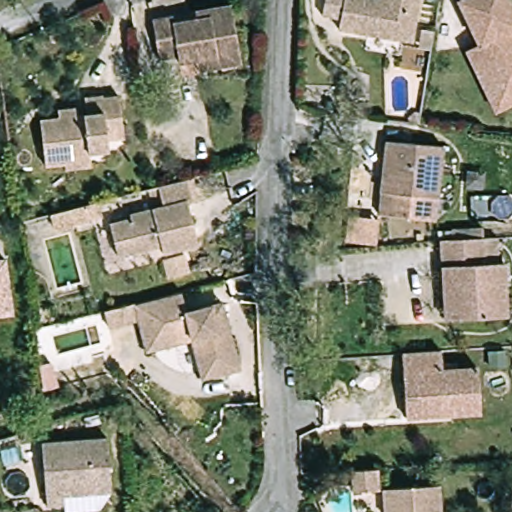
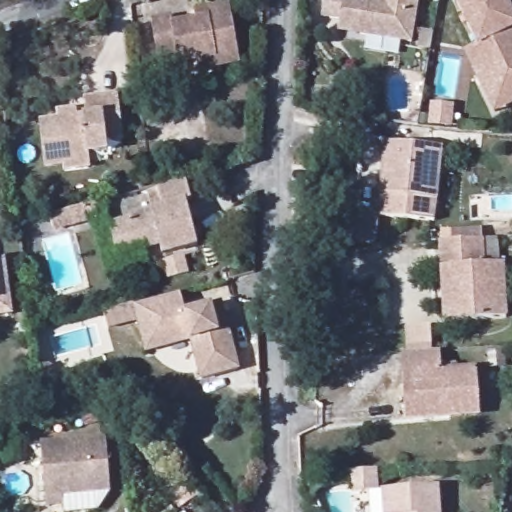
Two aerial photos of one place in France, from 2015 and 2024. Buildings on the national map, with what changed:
unchanged [(339,29),(341,17),(324,14),(327,0),(419,0),(410,43),(339,29)]
unchanged [(492,67),(482,72),(474,55),(484,50),(464,4),(473,0),(511,0),(512,3),(512,88),(505,90),(492,67)]
unchanged [(202,71),(200,60),(190,61),(188,51),(160,56),(154,20),(172,16),(173,20),(195,17),(194,8),(209,6),(232,2),(240,53),(242,65),(202,71)]
unchanged [(435,34),(432,53),(417,50),(420,32),(435,34)]
unchanged [(512,88),(512,110),(502,114),(482,72),(492,67),(505,90),(512,88)]
unchanged [(64,171),(64,168),(44,167),(42,124),(61,123),(61,114),(76,112),(76,122),(88,121),(90,103),(123,102),(124,145),(107,145),(106,155),(87,156),(87,171),(64,171)]
unchanged [(387,161),(388,140),(445,145),(442,200),(420,199),(419,217),(384,215),(385,195),(387,161)]
unchanged [(150,215),(148,192),(156,190),(188,184),(192,206),(187,207),(198,251),(160,259),(159,250),(115,260),(108,227),(130,223),(130,218),(150,215)]
unchanged [(64,225),(59,212),(90,205),(92,219),(64,225)]
unchanged [(440,271),(438,245),(480,242),(480,266),(499,267),(500,320),(474,321),(455,322),(444,323),(440,271)]
unchanged [(11,320),(0,320),(0,264),(7,265),(11,320)]
unchanged [(138,298),(185,288),(191,310),(227,302),(240,367),(206,373),(198,375),(190,341),(149,350),(146,336),(138,298)]
unchanged [(411,420),(407,353),(447,350),(447,370),(482,368),(484,400),(485,415),(450,416),(411,420)]
unchanged [(101,512),(63,512),(63,508),(45,508),(41,444),(108,441),(111,496),(101,512)]
unchanged [(376,468),(376,489),(352,490),(352,470),(376,468)]
unchanged [(382,488),(438,485),(439,512),(383,512),(382,488)]

